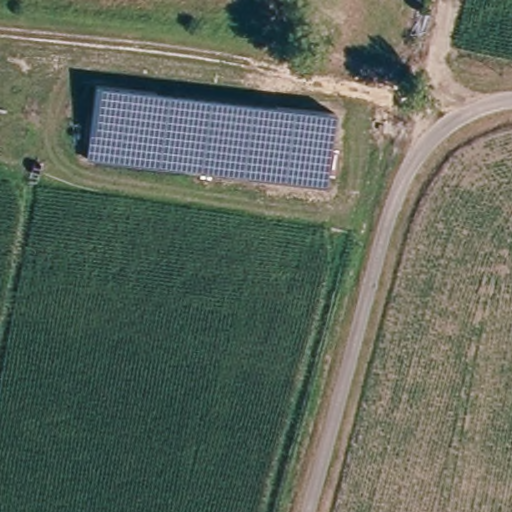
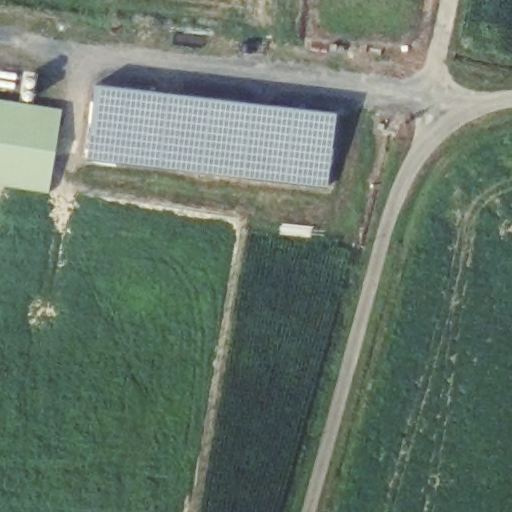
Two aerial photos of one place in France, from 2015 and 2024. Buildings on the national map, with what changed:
unchanged [(335,114),(327,187),(87,159),(100,86),(335,114)]
new [(0,100),(62,110),(49,192),(0,184),(0,100)]

